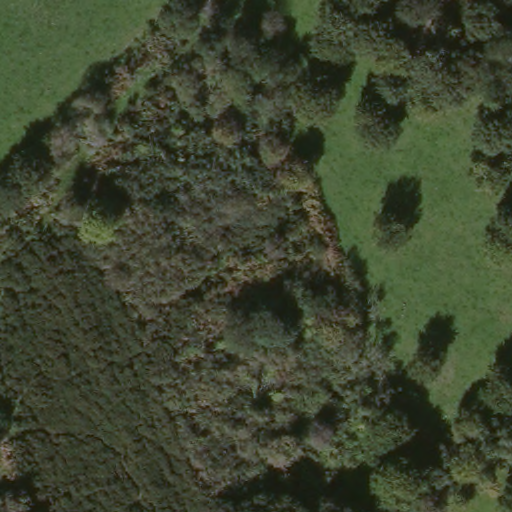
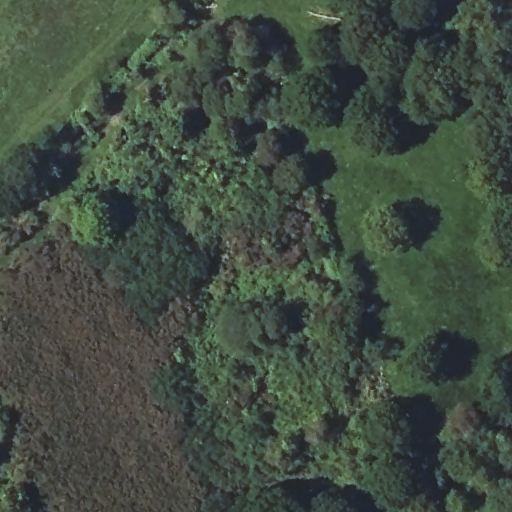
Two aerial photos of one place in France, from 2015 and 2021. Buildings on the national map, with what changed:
[]

